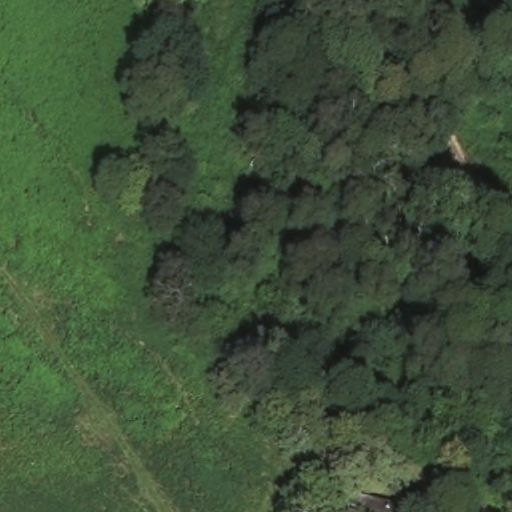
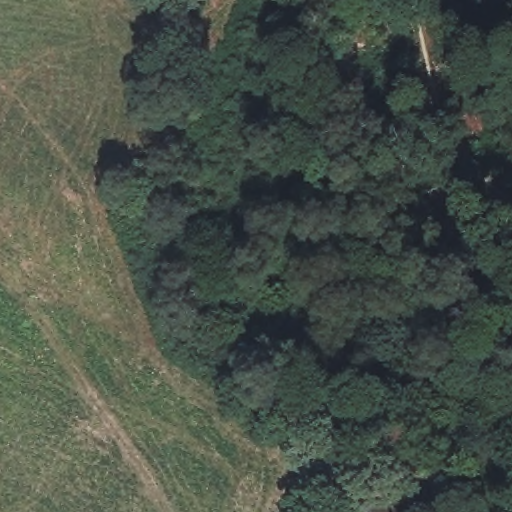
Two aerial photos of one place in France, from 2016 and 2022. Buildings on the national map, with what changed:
unchanged [(414,475),(370,448),(387,419),(432,445),(414,475)]
unchanged [(401,497),(397,512),(332,512),(338,485),(401,497)]

